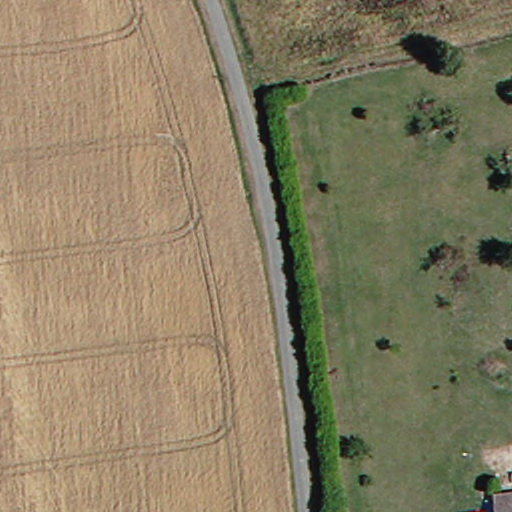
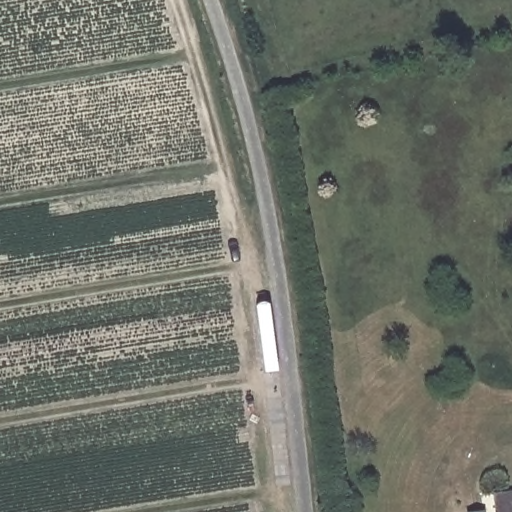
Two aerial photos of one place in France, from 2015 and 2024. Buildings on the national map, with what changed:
unchanged [(512,512),(491,512),(489,498),(512,494),(512,512)]

